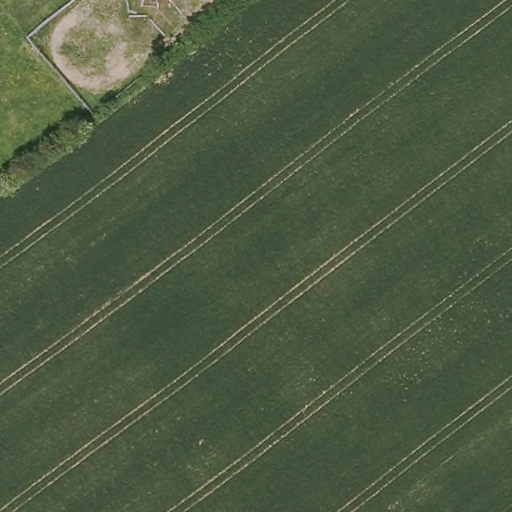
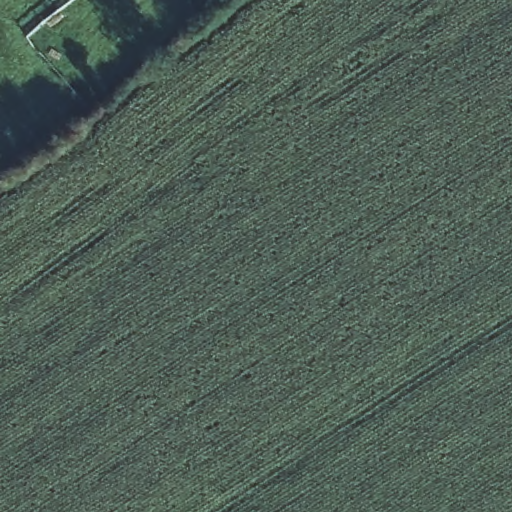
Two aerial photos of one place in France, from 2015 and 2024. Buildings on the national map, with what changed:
[]

